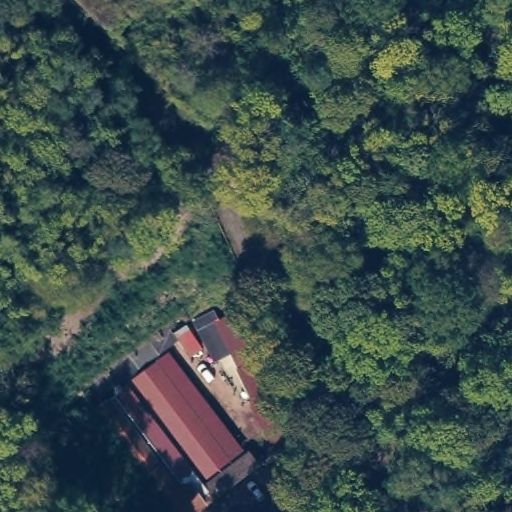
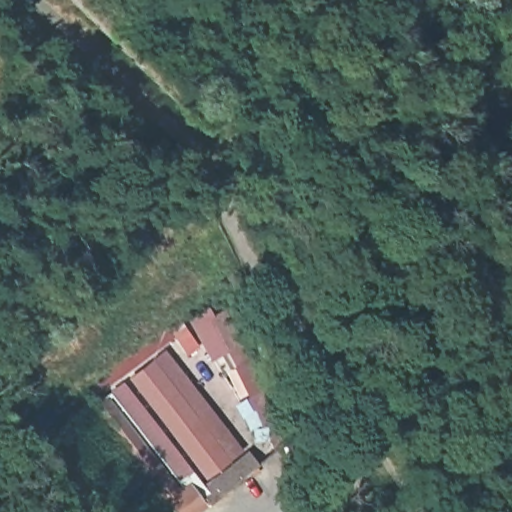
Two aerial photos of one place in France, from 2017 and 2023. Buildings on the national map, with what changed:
unchanged [(266,381),(238,395),(224,353),(209,357),(196,331),(239,315),(266,381)]
unchanged [(242,446),(206,474),(131,377),(168,351),(242,446)]
unchanged [(204,508),(198,512),(180,512),(101,406),(119,392),(190,484),(195,480),(202,489),(212,502),(204,508)]
unchanged [(202,489),(254,450),(264,463),(212,502),(202,489)]

